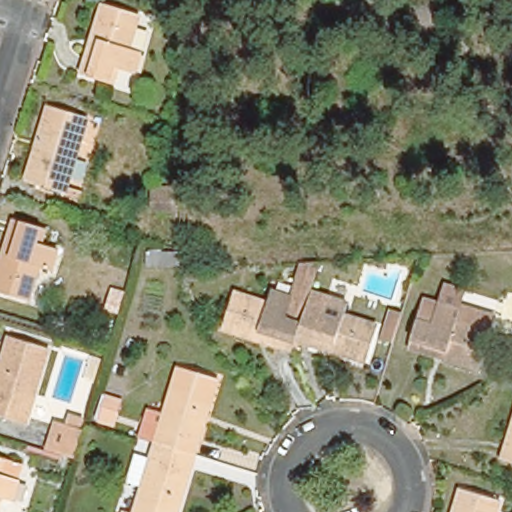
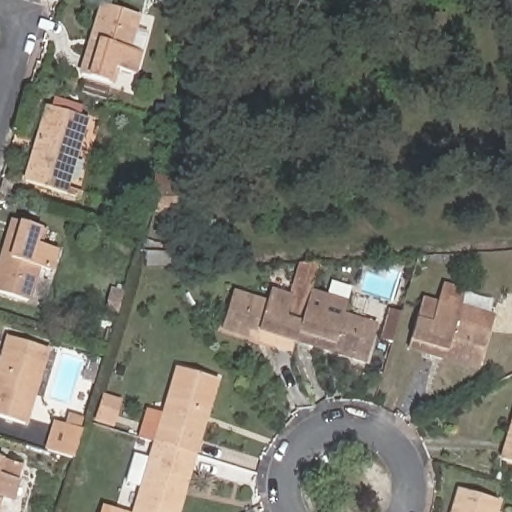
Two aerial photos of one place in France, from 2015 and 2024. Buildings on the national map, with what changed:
unchanged [(130,73),(111,66),(105,81),(78,73),(99,5),(135,18),(125,50),(136,54),(130,73)]
unchanged [(83,114),(61,187),(22,175),(44,101),(83,114)]
unchanged [(37,229),(32,245),(52,251),(47,270),(35,267),(25,300),(0,293),(0,255),(10,220),(37,229)]
unchanged [(287,317),(286,320),(281,337),(279,342),(277,347),(208,324),(220,289),(253,299),(257,288),(278,294),(281,284),(289,257),(303,257),(305,256),(296,288),(294,293),(287,317)]
unchanged [(479,370),(409,350),(417,322),(433,327),(438,305),(443,286),(465,292),(461,307),(493,315),(479,370)]
unchanged [(287,317),(294,293),(309,298),(311,293),(333,301),(351,306),(347,318),(362,323),(351,359),(281,337),(286,320),(287,317)]
unchanged [(48,351),(26,424),(0,416),(0,369),(9,338),(48,351)]
unchanged [(174,365),(213,377),(190,451),(165,443),(151,439),(174,365)]
unchanged [(512,402),(512,471),(492,465),(512,402)]
unchanged [(70,449),(45,441),(54,411),(79,419),(70,449)]
unchanged [(190,451),(172,512),(129,512),(151,439),(165,443),(190,451)]
unchanged [(0,506),(0,465),(1,465),(23,472),(19,487),(13,506),(1,503),(0,506)]
unchanged [(499,503),(496,512),(453,512),(459,490),(499,503)]
unchanged [(126,512),(124,512),(124,511),(126,512)]

